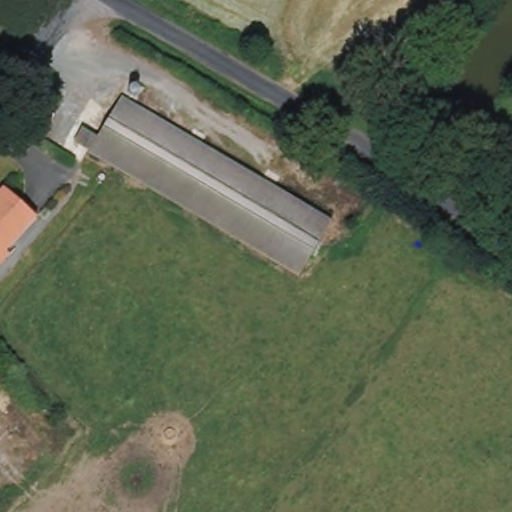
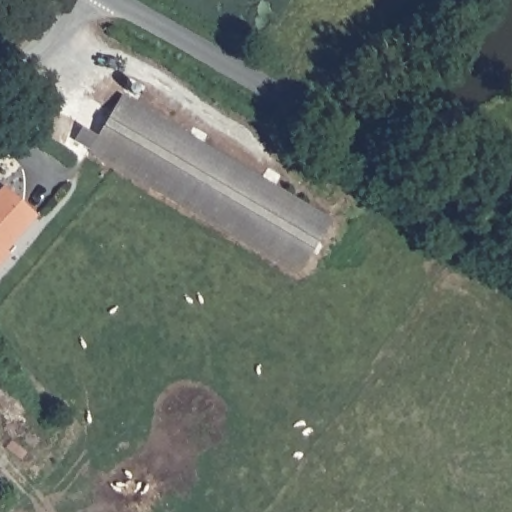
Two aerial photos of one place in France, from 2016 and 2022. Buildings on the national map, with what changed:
unchanged [(218,153),(272,184),(331,218),(299,274),(73,142),(81,129),(97,138),(120,96),(218,153)]
unchanged [(0,194),(6,188),(38,216),(11,249),(14,252),(0,267),(0,194)]

